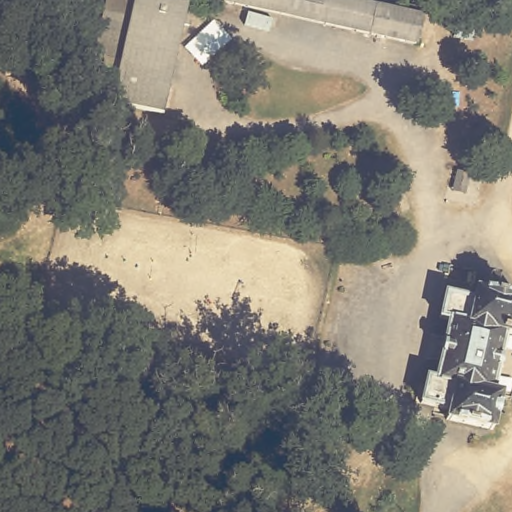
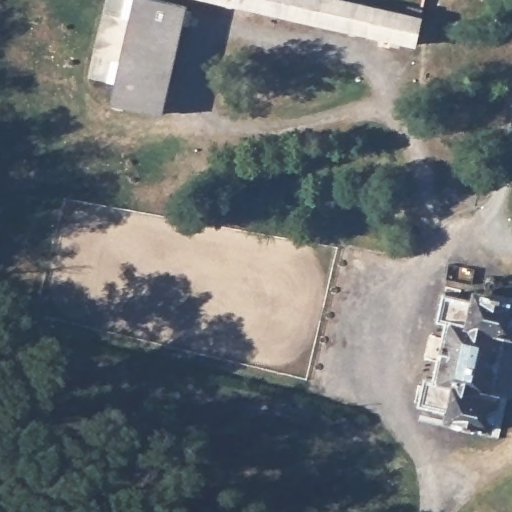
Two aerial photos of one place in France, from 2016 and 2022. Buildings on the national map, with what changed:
unchanged [(109,0),(138,0),(118,83),(92,76),(109,0)]
unchanged [(165,115),(114,103),(118,83),(138,0),(159,0),(188,6),(165,115)]
unchanged [(366,0),(425,14),(418,40),(250,0),(366,0)]
unchanged [(511,31),(481,24),(486,7),(512,14),(512,26),(511,31)]
unchanged [(478,280),(512,287),(512,391),(503,390),(499,414),(447,403),(448,394),(414,387),(417,371),(428,373),(432,358),(422,356),(432,310),(444,313),(447,301),(436,299),(441,279),(477,286),(478,280)]

